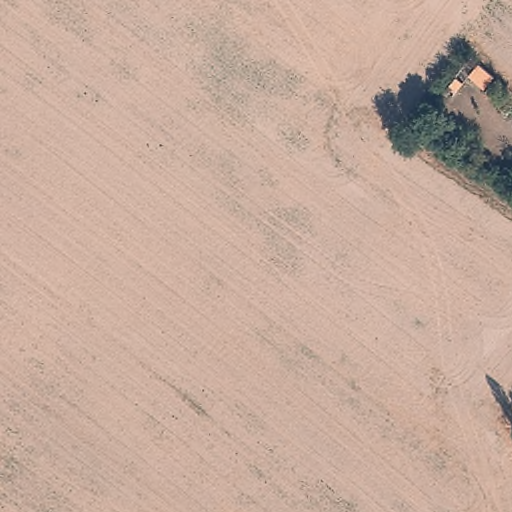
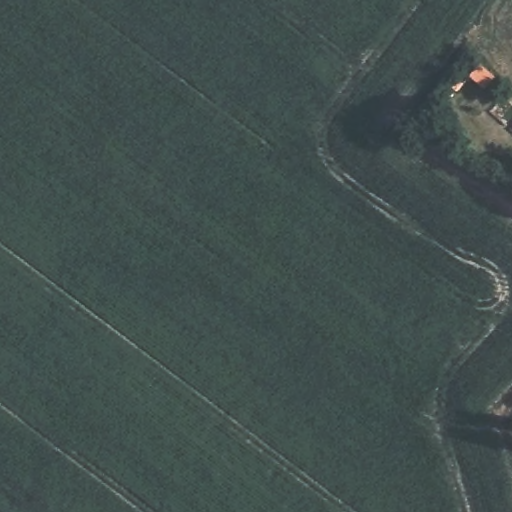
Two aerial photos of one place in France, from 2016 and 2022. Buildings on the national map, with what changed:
[]

